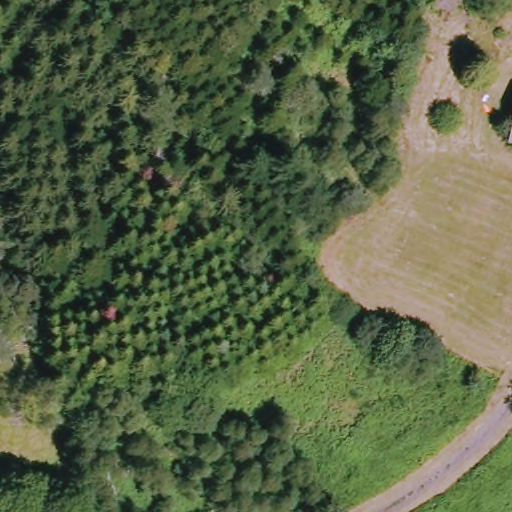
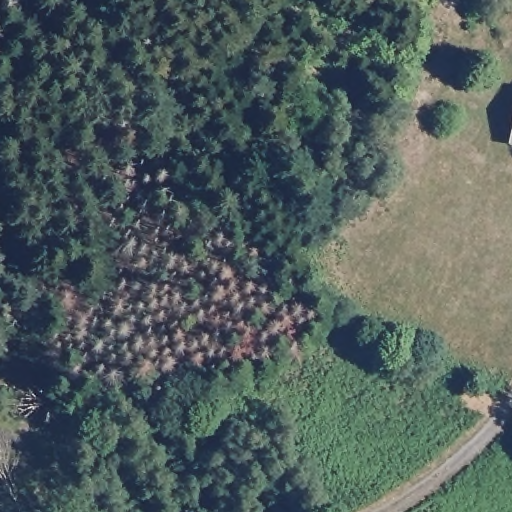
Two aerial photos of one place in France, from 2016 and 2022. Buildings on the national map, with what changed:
unchanged [(509,149),(512,129),(512,149),(509,149)]

